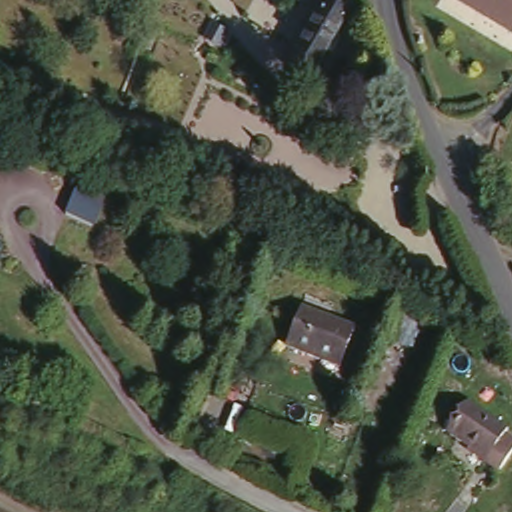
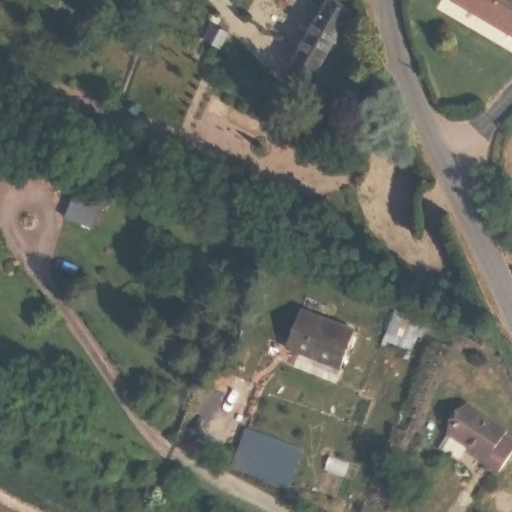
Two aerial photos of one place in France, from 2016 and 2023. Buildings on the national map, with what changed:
unchanged [(311,19),(323,0),(343,0),(351,4),(333,30),(307,88),(282,75),(311,19)]
unchanged [(465,0),(512,0),(512,35),(465,0)]
unchanged [(106,196),(97,222),(69,211),(75,188),(106,196)]
unchanged [(354,334),(339,373),(282,350),(297,310),(354,334)]
unchanged [(512,441),(512,453),(497,476),(438,442),(457,408),(512,441)]
demolished [(299,459),(286,495),(229,473),(242,436),(299,459)]

